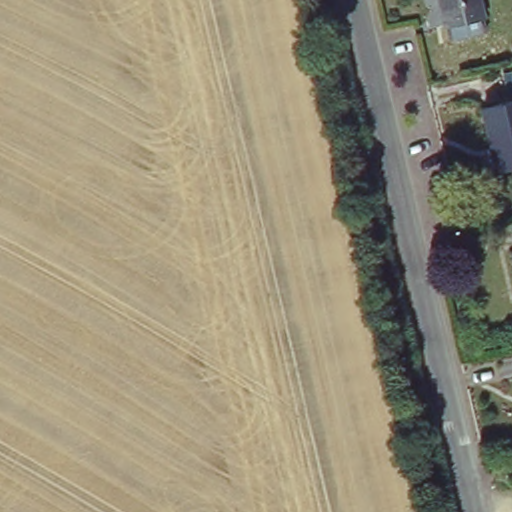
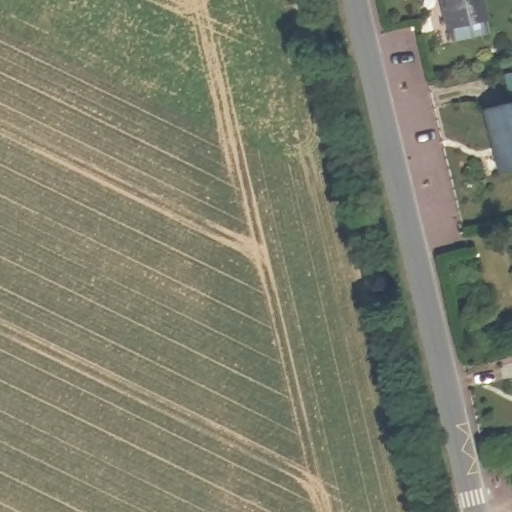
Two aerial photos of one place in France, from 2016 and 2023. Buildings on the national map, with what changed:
unchanged [(482,36),(445,44),(437,0),(475,0),(482,36)]
unchanged [(512,168),(494,172),(480,113),(512,105),(512,168)]
unchanged [(512,255),(512,258),(511,256),(512,255)]

